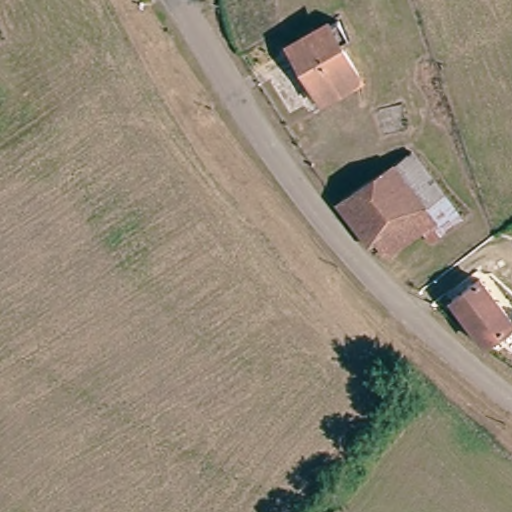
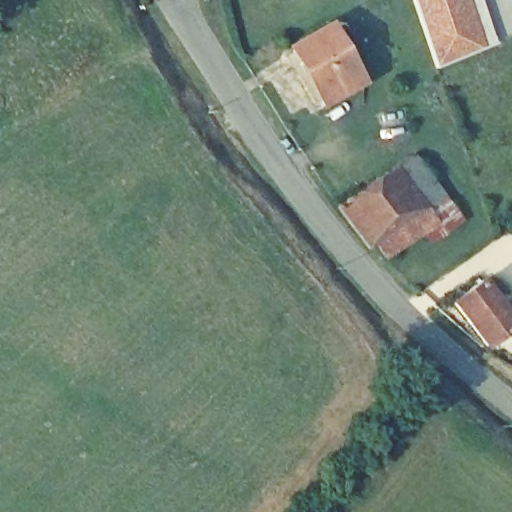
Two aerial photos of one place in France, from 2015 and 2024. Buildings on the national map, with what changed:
new [(495,42),(436,69),(412,0),(481,0),(495,42)]
unchanged [(286,50),(331,20),(341,37),(332,43),(353,78),(316,100),(286,50)]
unchanged [(344,196),(409,157),(419,174),(416,176),(437,205),(386,237),(378,242),(344,196)]
unchanged [(395,252),(386,237),(437,205),(446,219),(395,252)]
unchanged [(486,336),(455,296),(480,278),(511,317),(486,336)]

